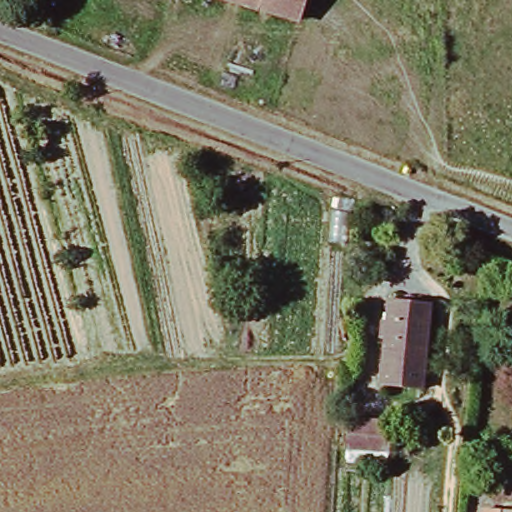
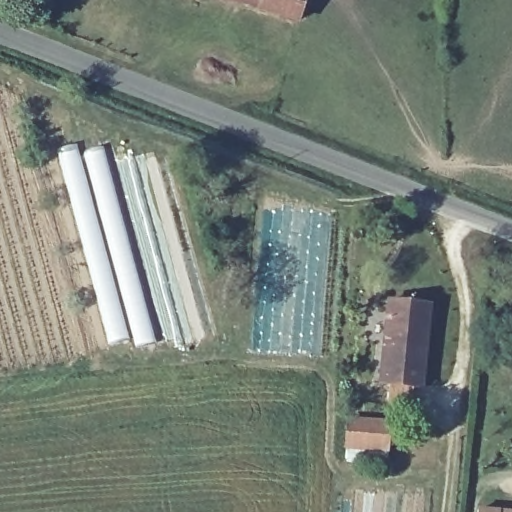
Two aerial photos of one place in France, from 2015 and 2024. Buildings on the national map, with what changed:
unchanged [(202,0),(310,0),(305,23),(202,0)]
new [(77,144),(81,154),(90,184),(131,339),(108,345),(56,151),(77,144)]
new [(105,148),(157,341),(134,347),(131,339),(90,184),(81,154),(105,148)]
unchanged [(387,383),(395,301),(437,306),(428,388),(387,383)]
unchanged [(350,453),(352,427),(391,429),(389,455),(350,453)]

